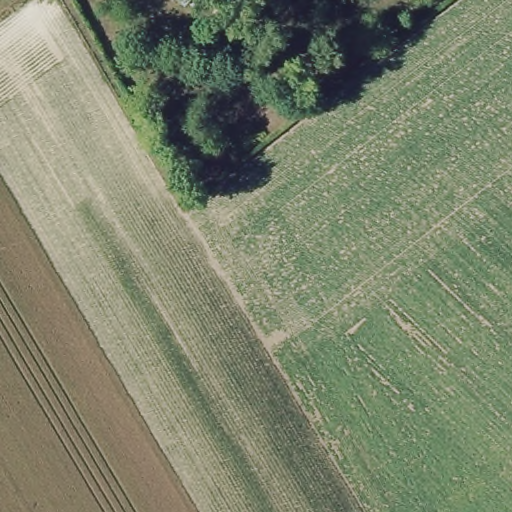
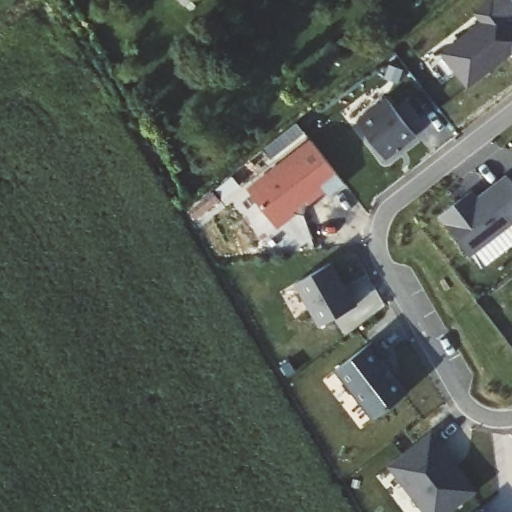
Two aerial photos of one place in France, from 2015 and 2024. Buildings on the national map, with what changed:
unchanged [(178,0),(184,0),(181,3),(178,0)]
new [(475,10),(489,0),(495,0),(512,22),(512,55),(467,89),(440,52),(482,19),(475,10)]
new [(365,119),(362,116),(385,99),(416,138),(388,160),(359,123),(365,119)]
new [(328,196),(325,192),(278,229),(246,188),(310,139),(345,184),(328,196)]
new [(481,270),(440,216),(472,190),(477,196),(506,174),(512,182),(512,246),(481,270)]
new [(295,283),(332,262),(357,305),(319,327),(295,283)]
new [(335,371),(370,343),(387,366),(383,369),(391,379),(395,375),(408,392),(372,420),(335,371)]
new [(479,491),(451,512),(422,512),(386,466),(432,430),(479,491)]

